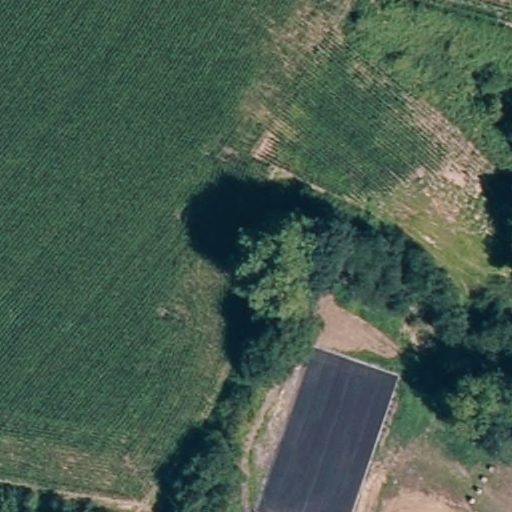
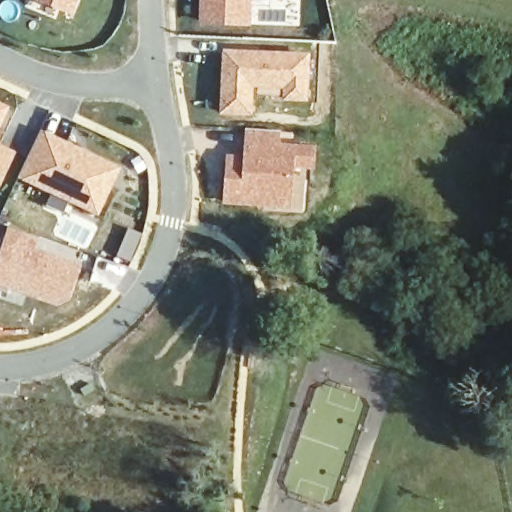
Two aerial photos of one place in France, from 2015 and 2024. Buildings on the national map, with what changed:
new [(72,16),(35,0),(78,0),(72,16)]
new [(250,27),(199,25),(200,0),(252,0),(250,27)]
new [(310,54),(308,103),(283,102),(283,90),(255,87),(252,117),(220,115),(222,50),(310,54)]
new [(9,107),(0,127),(0,103),(9,107)]
new [(98,216),(18,179),(41,130),(121,169),(98,216)]
new [(243,157),(245,133),(281,136),(280,144),(289,145),(288,155),(295,156),(291,209),(223,205),(227,156),(243,157)]
new [(0,188),(0,144),(17,152),(0,188)]
new [(34,247),(81,265),(70,299),(58,305),(0,286),(0,252),(8,227),(38,238),(34,247)]

